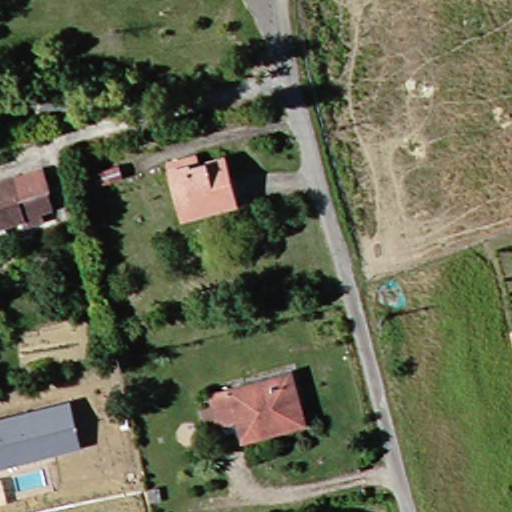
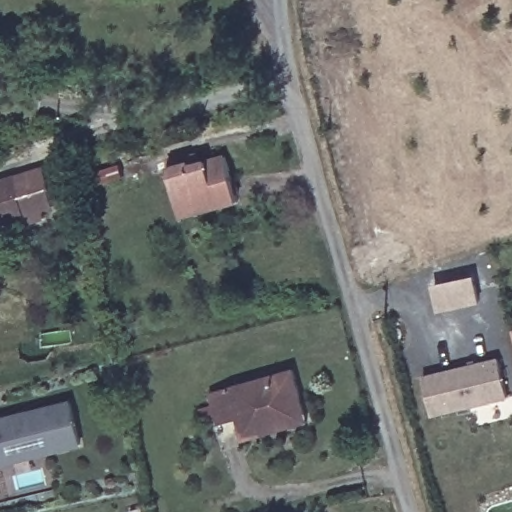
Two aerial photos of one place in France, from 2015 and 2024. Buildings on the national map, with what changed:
unchanged [(181,215),(172,173),(169,162),(199,155),(202,166),(231,160),(242,209),(222,213),(182,222),(181,215)]
unchanged [(48,197),(44,198),(47,217),(39,219),(41,226),(17,231),(15,223),(0,226),(0,183),(43,174),(48,197)]
new [(499,359),(509,400),(502,401),(506,415),(482,421),(480,408),(432,418),(422,377),(499,359)]
unchanged [(267,432),(250,438),(242,414),(221,421),(214,396),(297,367),(311,407),(314,417),(267,432)]
unchanged [(0,418),(71,400),(82,444),(0,465),(0,418)]

